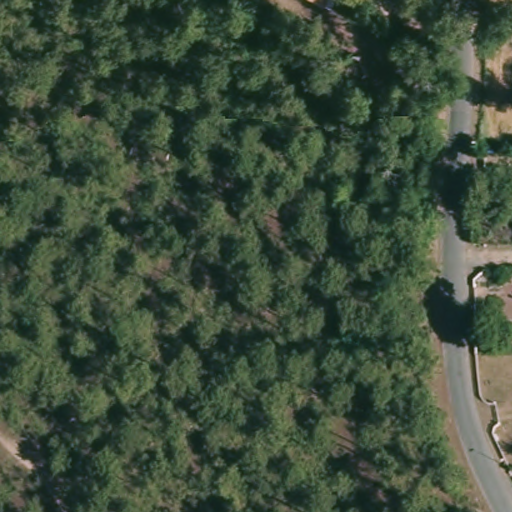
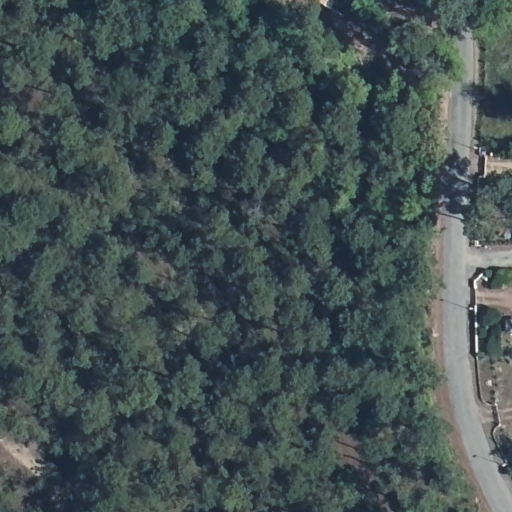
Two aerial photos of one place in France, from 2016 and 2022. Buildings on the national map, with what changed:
unchanged [(316,0),(326,0),(323,5),(316,0)]

